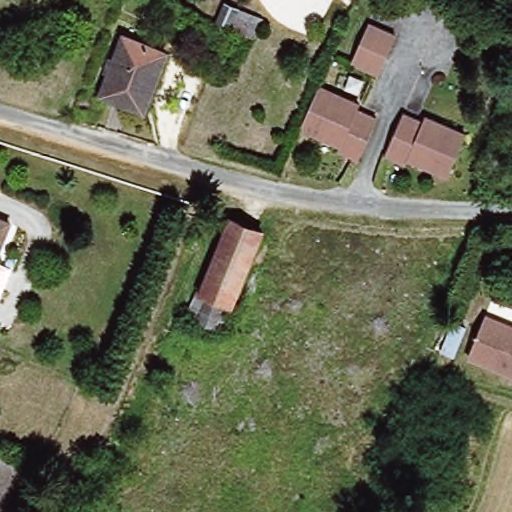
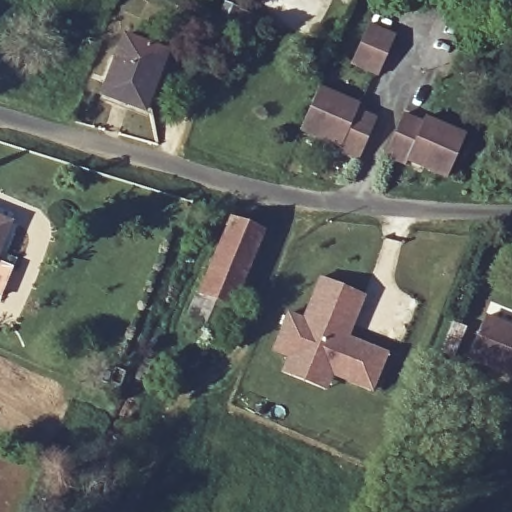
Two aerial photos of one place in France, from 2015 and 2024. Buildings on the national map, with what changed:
new [(255,44),(232,33),(220,27),(230,4),(242,10),(266,21),(255,44)]
unchanged [(393,36),(376,76),(351,65),(368,26),(393,36)]
unchanged [(168,52),(145,114),(101,97),(125,37),(168,52)]
unchanged [(338,151),(340,146),(300,129),(318,87),(358,104),(356,110),(377,119),(375,125),(360,160),(338,151)]
unchanged [(469,137),(452,179),(415,164),(413,169),(390,160),(404,124),(407,117),(427,125),(429,121),(469,137)]
unchanged [(11,221),(0,248),(0,217),(11,221)]
unchanged [(238,311),(229,333),(197,321),(206,297),(236,223),(269,236),(238,311)]
new [(274,353),(288,316),(304,322),(321,279),(352,291),(364,296),(347,340),(387,355),(373,392),(333,376),(327,391),(283,373),(289,359),(274,353)]
unchanged [(484,317),(512,330),(512,377),(467,357),(484,317)]
unchanged [(439,347),(451,320),(464,326),(452,353),(439,347)]

